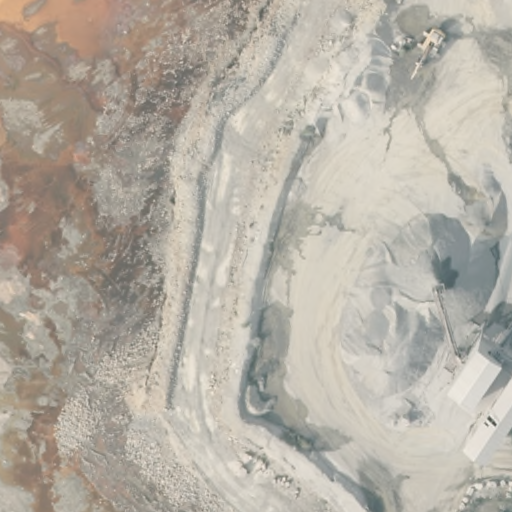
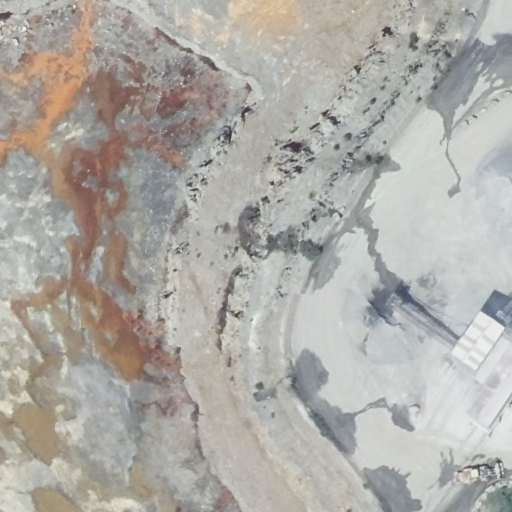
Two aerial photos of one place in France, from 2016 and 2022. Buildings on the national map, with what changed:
unchanged [(510,340),(479,381),(456,362),(484,320),(510,340)]
unchanged [(470,423),(512,356),(512,412),(493,438),(470,423)]

